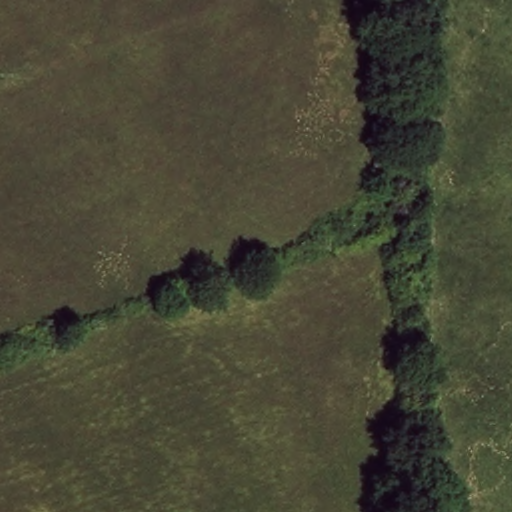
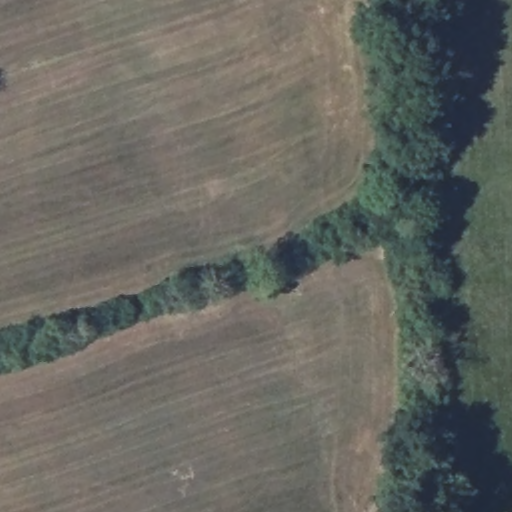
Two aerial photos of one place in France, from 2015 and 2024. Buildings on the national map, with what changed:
[]

